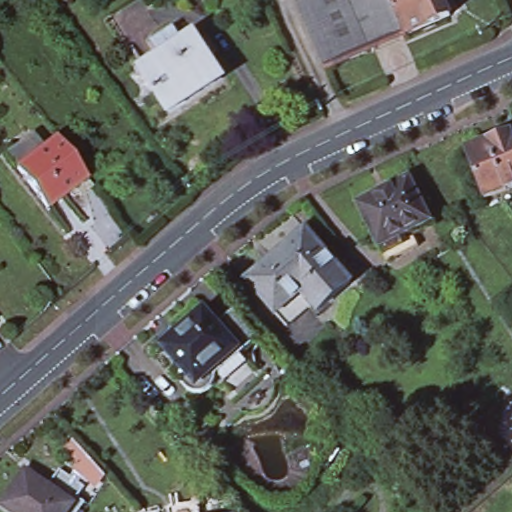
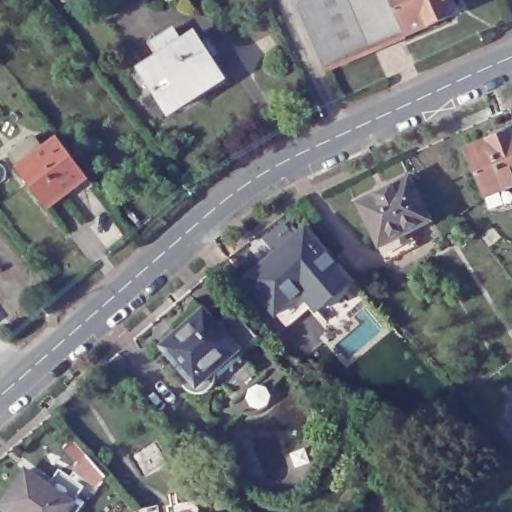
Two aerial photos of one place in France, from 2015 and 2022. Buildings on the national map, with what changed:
unchanged [(298,0),(386,0),(403,39),(387,46),(321,74),(294,11),(298,0)]
unchanged [(447,20),(403,39),(386,0),(438,0),(447,20)]
unchanged [(136,74),(146,67),(165,55),(157,42),(178,28),(187,42),(198,34),(225,79),(175,111),(157,84),(146,90),(136,74)]
unchanged [(490,131),(503,126),(506,128),(511,127),(512,130),(512,183),(486,193),(466,145),(488,136),(490,131)]
unchanged [(59,138),(89,179),(54,205),(50,209),(19,168),(24,165),(59,138)]
unchanged [(387,257),(380,244),(358,200),(410,174),(432,218),(412,228),(420,241),(387,257)]
unchanged [(306,226),(352,280),(317,309),(301,289),(275,311),(246,277),(306,226)]
unchanged [(248,358),(260,370),(235,394),(215,377),(201,391),(156,339),(196,303),(218,325),(236,308),(265,340),(248,358)]
unchanged [(26,468),(47,484),(60,467),(84,485),(72,502),(68,507),(74,512),(15,512),(1,502),(26,468)]

